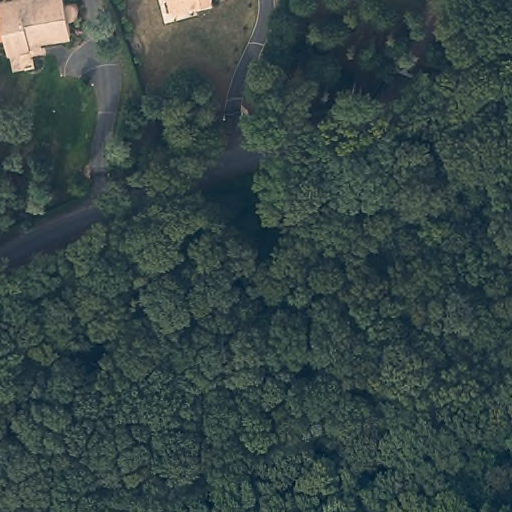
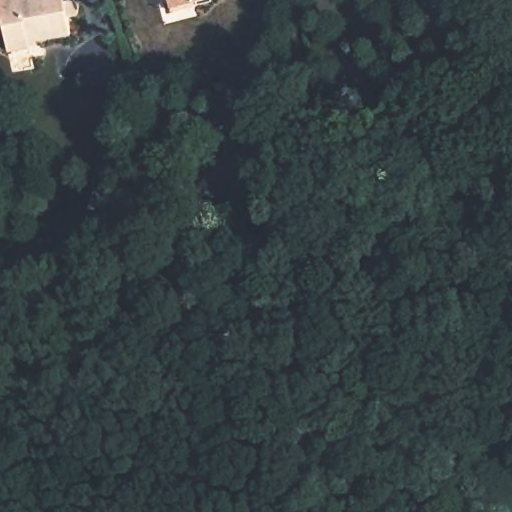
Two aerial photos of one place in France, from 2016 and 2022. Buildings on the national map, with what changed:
unchanged [(41,36),(41,44),(9,47),(6,33),(0,34),(0,0),(65,0),(70,32),(58,34),(41,36)]
unchanged [(172,10),(169,0),(213,0),(172,10)]

